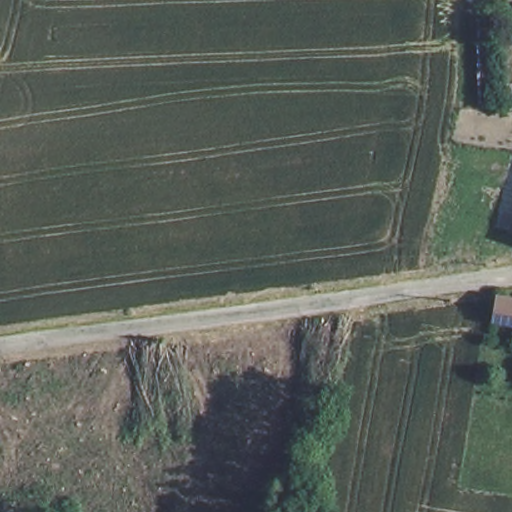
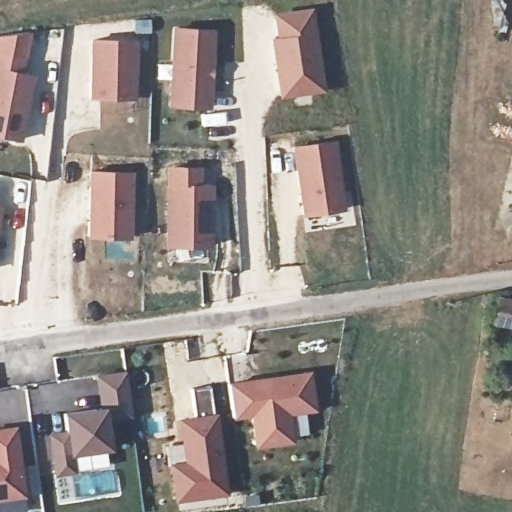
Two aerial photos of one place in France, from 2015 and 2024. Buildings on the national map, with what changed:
new [(326,96),(281,102),(272,42),(277,40),(275,15),(315,11),(326,96)]
new [(217,32),(212,113),(169,111),(173,30),(217,32)]
new [(138,44),(138,104),(90,104),(91,42),(138,44)]
new [(23,76),(35,78),(23,147),(0,143),(0,56),(25,60),(23,76)]
new [(336,143),(346,215),(303,220),(293,148),(336,143)]
new [(202,169),(202,188),(214,188),(213,252),(166,251),(168,169),(202,169)]
new [(135,174),(133,245),(88,243),(90,173),(135,174)]
new [(0,228),(0,209),(3,209),(0,228)]
unchanged [(512,298),(512,324),(491,319),(495,295),(512,298)]
new [(313,375),(317,416),(291,419),(295,448),(256,453),(253,422),(233,424),(229,385),(313,375)]
new [(66,434),(65,418),(101,414),(98,378),(128,376),(132,422),(110,425),(113,457),(75,462),(76,478),(55,481),(48,435),(66,434)]
new [(210,390),(213,416),(218,416),(228,501),(175,508),(171,468),(185,467),(181,421),(196,420),(194,391),(210,390)]
new [(27,503),(0,507),(0,431),(18,429),(27,503)]

